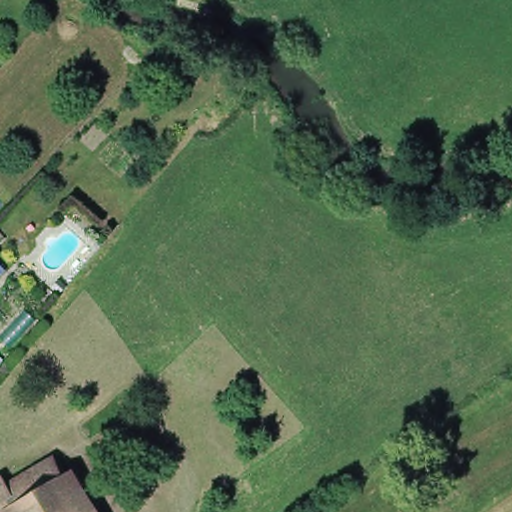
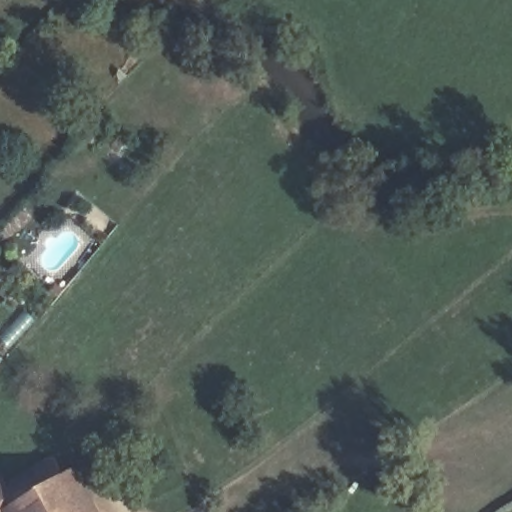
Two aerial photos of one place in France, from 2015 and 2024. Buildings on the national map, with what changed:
unchanged [(48,459),(71,497),(45,512),(15,512),(5,495),(0,497),(0,486),(1,487),(48,459)]
unchanged [(71,497),(79,512),(45,512),(71,497)]

